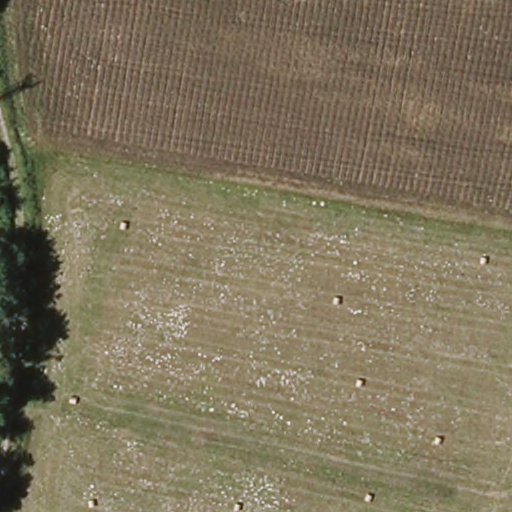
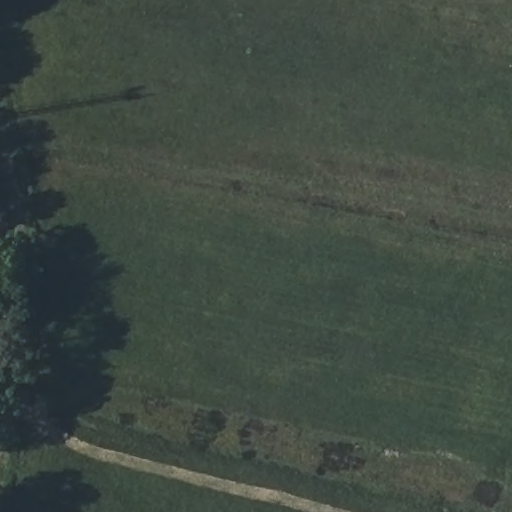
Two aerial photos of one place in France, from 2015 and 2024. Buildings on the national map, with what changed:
[]

